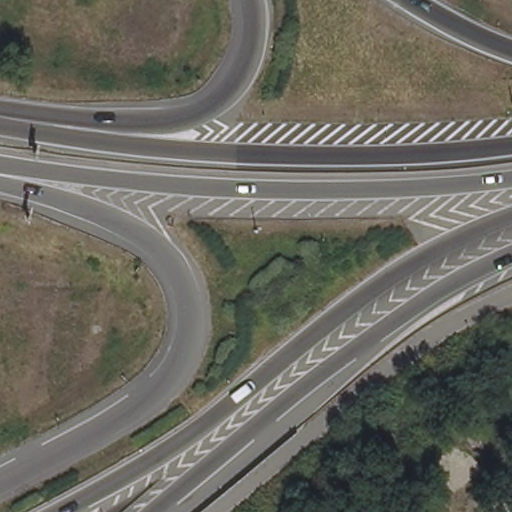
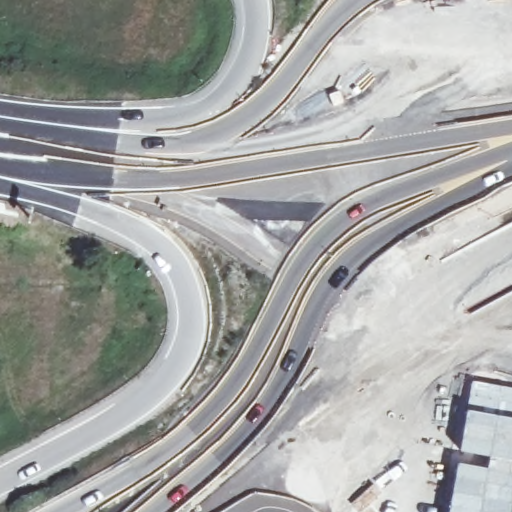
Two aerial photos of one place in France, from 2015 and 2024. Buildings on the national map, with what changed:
new [(472,379),(512,386),(512,417),(466,408),(472,379)]
new [(466,408),(512,417),(512,460),(488,456),(459,450),(466,408)]
new [(486,467),(488,456),(512,460),(512,466),(511,472),(512,472),(512,504),(511,512),(448,512),(457,461),(486,467)]

